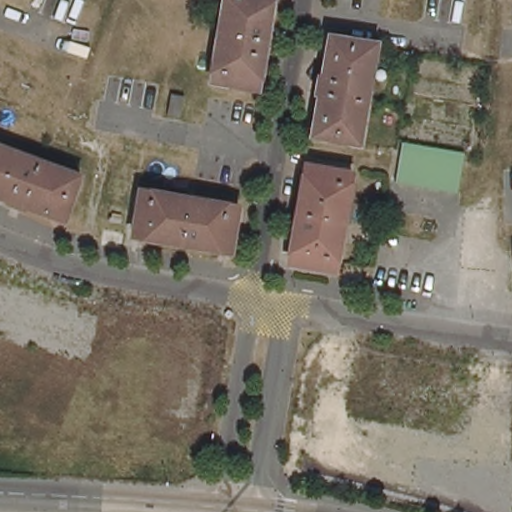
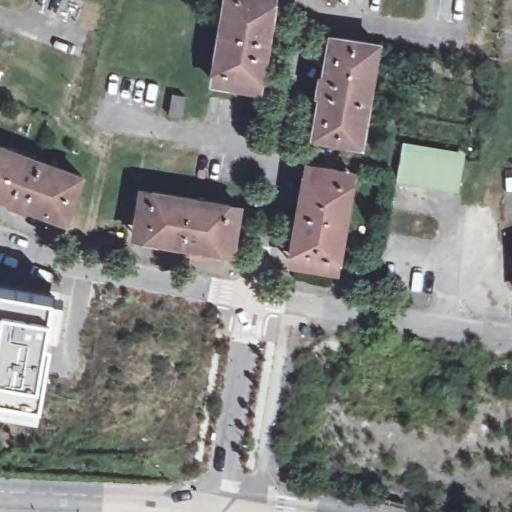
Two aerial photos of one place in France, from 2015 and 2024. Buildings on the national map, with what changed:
unchanged [(213,81),(226,0),(275,0),(260,89),(213,81)]
unchanged [(378,44),(361,143),(315,136),(323,93),(320,93),(322,77),(325,78),(332,36),(378,44)]
unchanged [(188,96),(185,118),(172,116),(175,93),(188,96)]
unchanged [(403,149),(405,141),(420,143),(436,146),(450,148),(467,151),(465,160),(460,192),(398,182),(403,149)]
unchanged [(12,199),(0,195),(0,145),(82,175),(67,219),(27,205),(25,208),(10,202),(12,199)]
unchanged [(355,173),(339,269),(290,262),(307,166),(355,173)]
unchanged [(240,206),(232,252),(135,237),(142,190),(240,206)]
new [(0,286),(53,295),(47,339),(52,340),(42,403),(40,414),(0,407),(0,286)]

